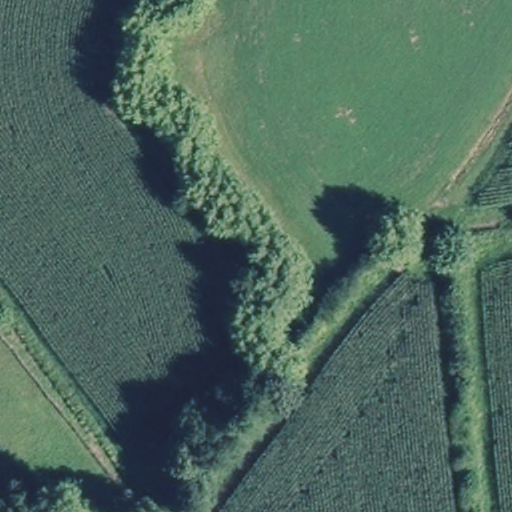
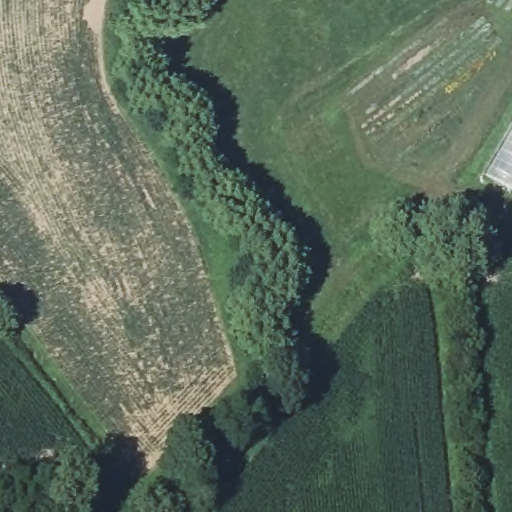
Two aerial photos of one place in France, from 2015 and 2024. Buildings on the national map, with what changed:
new [(512,125),(512,191),(483,175),(512,125)]

